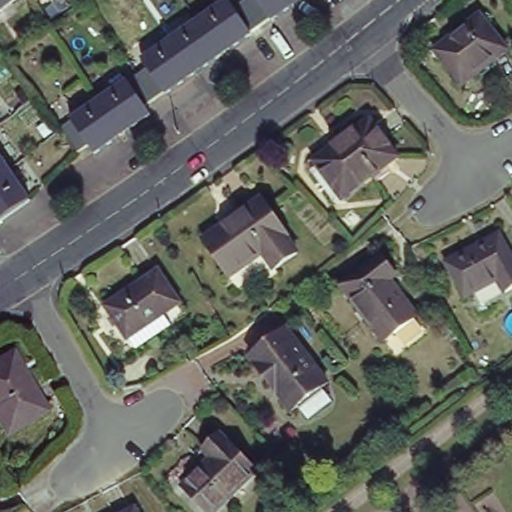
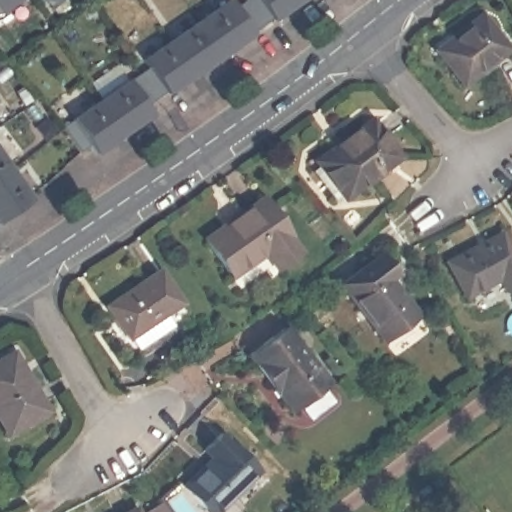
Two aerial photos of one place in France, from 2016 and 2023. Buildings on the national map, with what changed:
unchanged [(15,14),(5,21),(0,15),(0,0),(17,0),(9,6),(15,14)]
unchanged [(50,107),(65,98),(80,119),(144,74),(135,60),(145,54),(149,60),(234,2),(239,9),(250,0),(303,0),(150,106),(155,113),(100,151),(95,144),(85,151),(69,129),(50,107)]
unchanged [(508,49),(464,85),(440,54),(436,49),(452,35),(480,14),(508,49)]
unchanged [(340,197),(315,163),(320,160),(316,154),(371,112),(399,151),(345,194),(340,197)]
unchanged [(0,217),(0,149),(35,199),(3,221),(0,217)]
unchanged [(205,237),(263,196),(290,234),(288,235),(300,252),(276,268),(265,252),(231,276),(205,237)]
unchanged [(500,229),(512,250),(512,285),(506,287),(499,274),(466,291),(448,256),(500,229)]
unchanged [(342,288),(381,259),(396,280),(391,284),(417,320),(385,345),(342,288)]
unchanged [(104,321),(114,315),(107,305),(160,270),(180,302),(129,338),(126,334),(116,341),(104,321)]
unchanged [(255,350),(292,321),(333,377),(296,406),(255,350)]
unchanged [(0,420),(0,359),(14,351),(48,411),(8,434),(0,420)]
unchanged [(186,481),(215,452),(207,445),(225,427),(263,465),(216,511),(186,481)]

